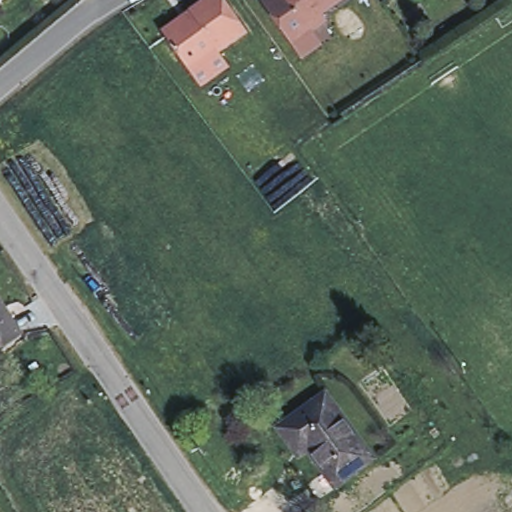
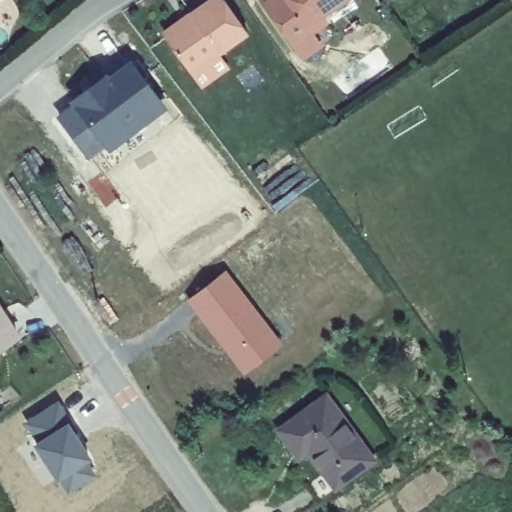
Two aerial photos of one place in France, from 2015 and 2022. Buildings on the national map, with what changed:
unchanged [(166,37),(174,30),(215,0),(219,0),(246,38),(203,69),(189,79),(164,43),(166,37)]
unchanged [(291,45),(261,4),(266,0),(340,0),(318,16),(322,22),(308,32),(317,46),(300,58),(291,45)]
new [(73,109),(70,105),(131,66),(166,111),(109,152),(106,148),(89,161),(59,120),(73,109)]
new [(227,272),(283,347),(245,377),(186,302),(227,272)]
unchanged [(16,335),(0,345),(0,310),(16,335)]
unchanged [(324,396),(371,460),(334,487),(308,451),(298,457),(279,431),(324,396)]
new [(60,403),(81,436),(78,437),(92,462),(88,464),(96,477),(70,497),(60,483),(59,485),(34,449),(38,446),(25,424),(60,403)]

